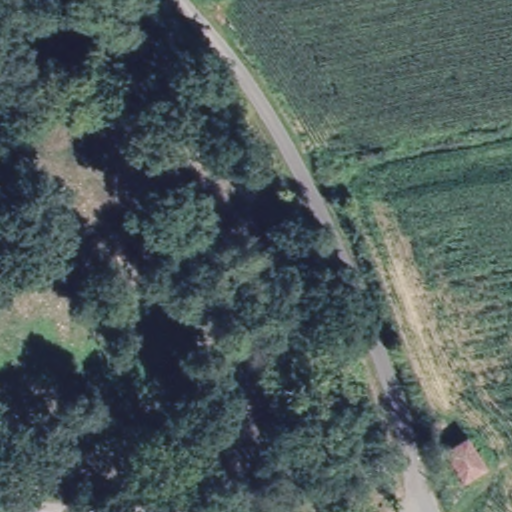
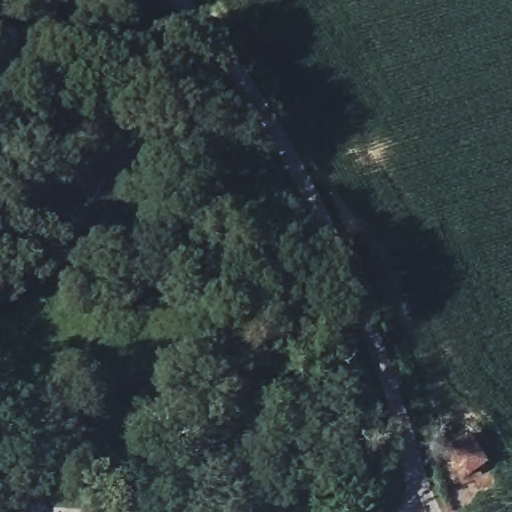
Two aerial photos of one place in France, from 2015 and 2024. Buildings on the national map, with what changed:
unchanged [(463,428),(485,456),(467,468),(447,442),(463,428)]

